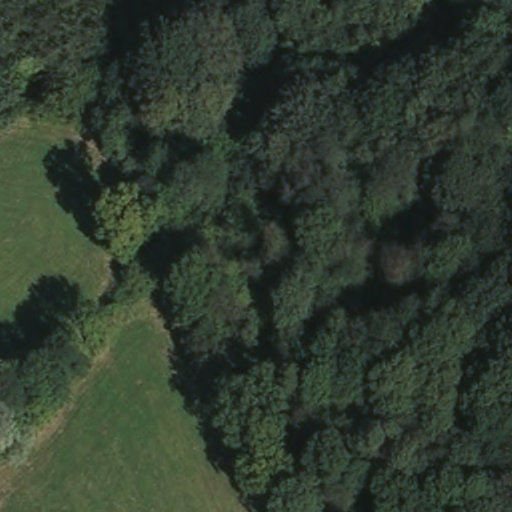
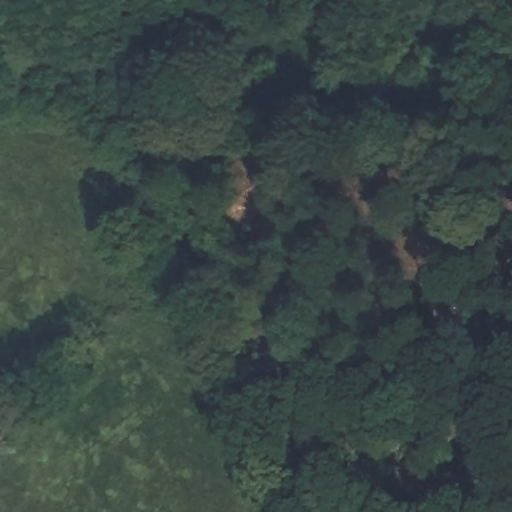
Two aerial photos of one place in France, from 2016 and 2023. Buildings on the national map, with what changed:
[]

